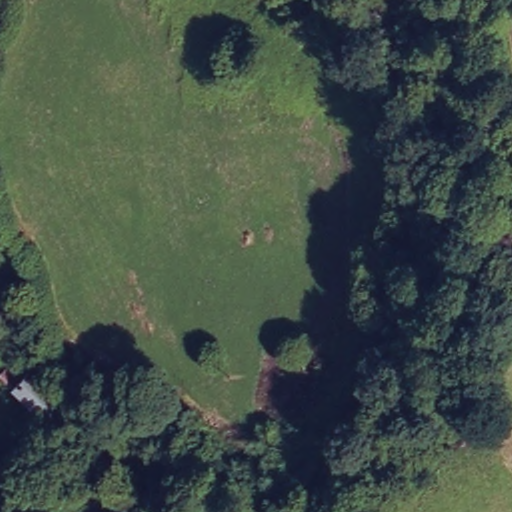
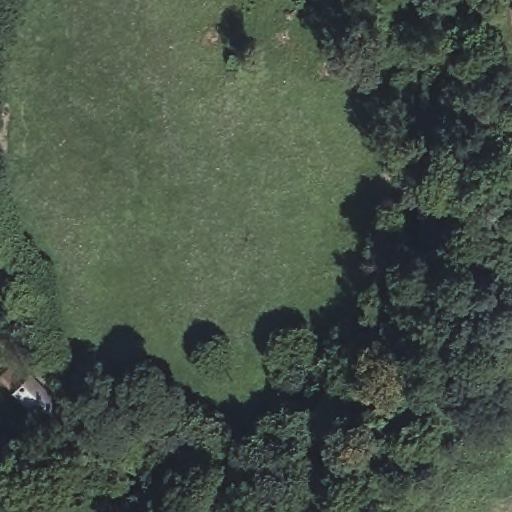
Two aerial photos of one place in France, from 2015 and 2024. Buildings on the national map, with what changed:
unchanged [(47,434),(2,387),(9,378),(22,391),(30,379),(68,417),(47,434)]

